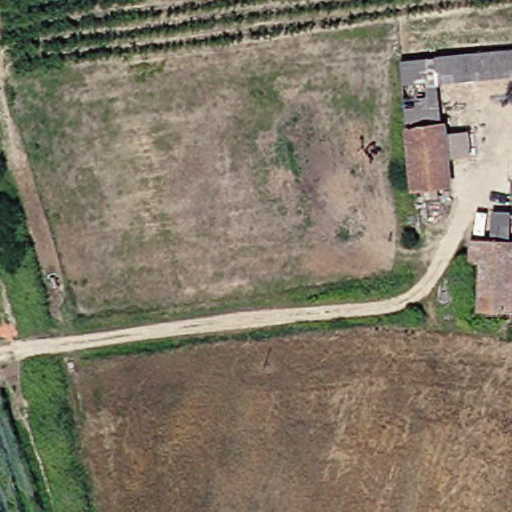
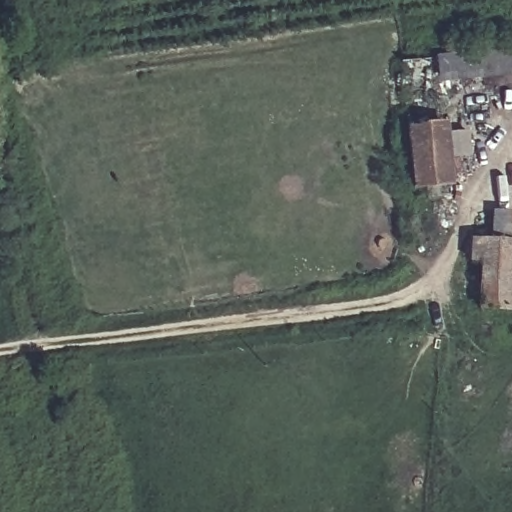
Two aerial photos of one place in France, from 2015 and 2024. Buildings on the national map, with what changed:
unchanged [(512,50),(512,72),(430,75),(394,74),(392,58),(512,50)]
unchanged [(433,119),(398,120),(394,74),(430,75),(433,119)]
unchanged [(438,180),(402,182),(398,120),(433,119),(438,180)]
unchanged [(475,256),(465,256),(465,238),(512,237),(512,308),(476,308),(475,256)]

